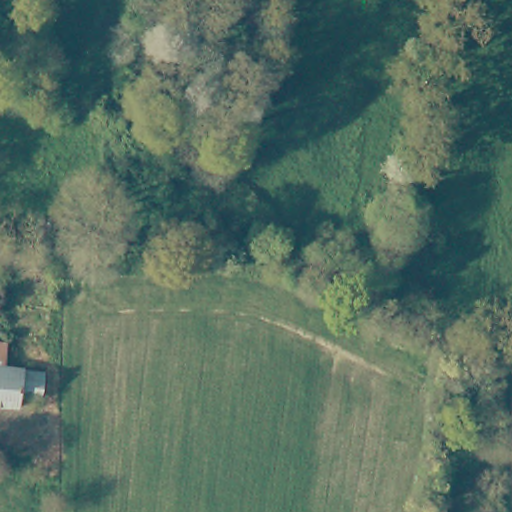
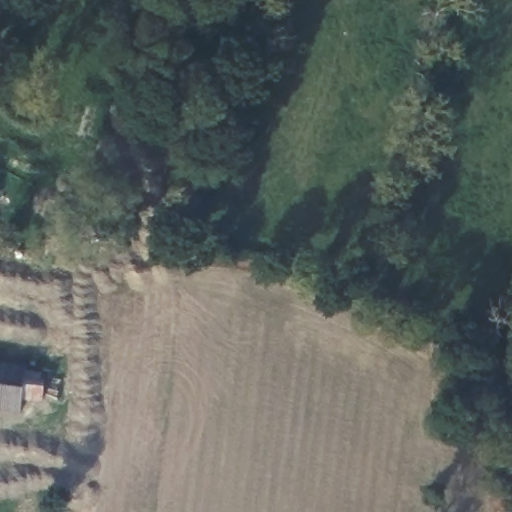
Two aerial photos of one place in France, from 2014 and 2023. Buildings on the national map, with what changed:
unchanged [(57,226),(55,244),(34,240),(39,221),(57,226)]
unchanged [(2,367),(46,370),(44,398),(27,397),(27,405),(0,402),(0,350),(3,351),(2,367)]

